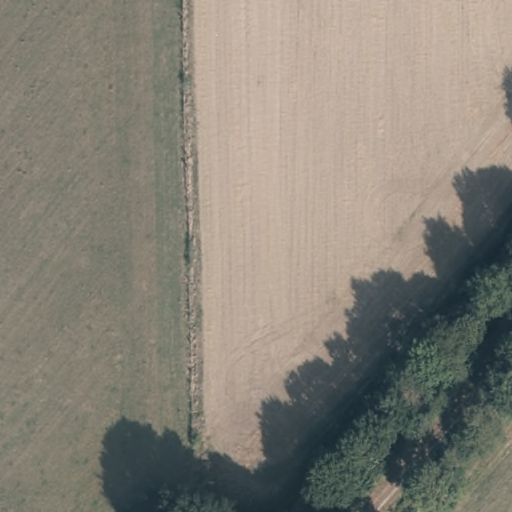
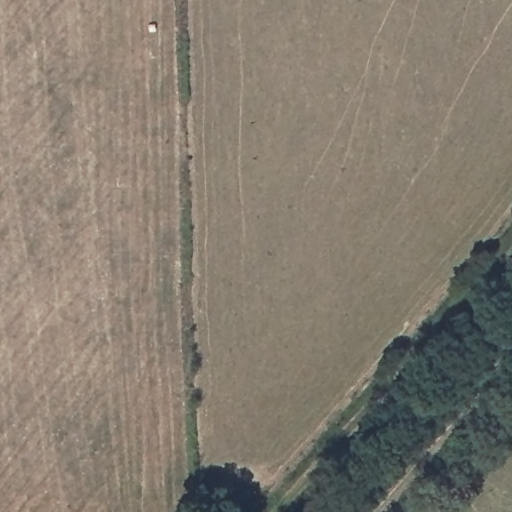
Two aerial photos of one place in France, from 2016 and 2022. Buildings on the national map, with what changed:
[]

